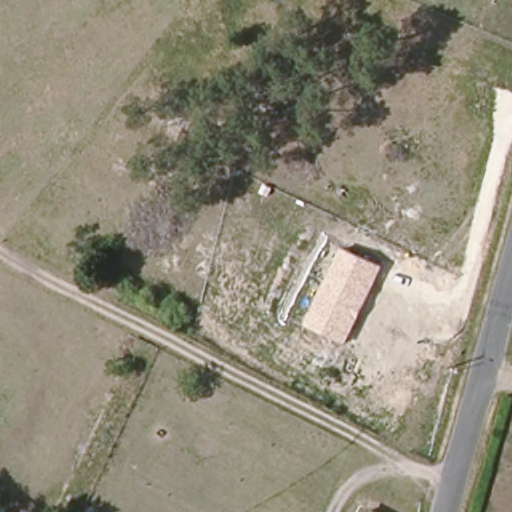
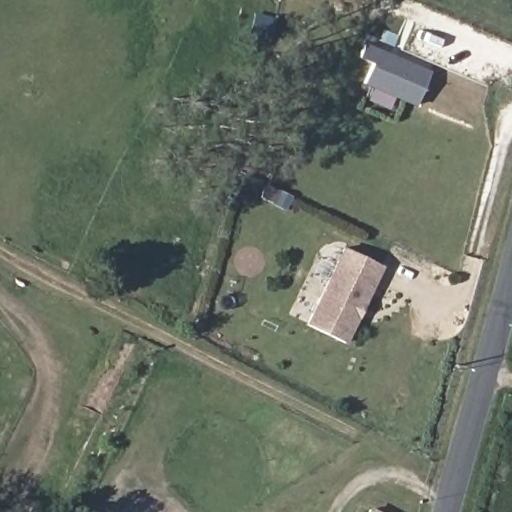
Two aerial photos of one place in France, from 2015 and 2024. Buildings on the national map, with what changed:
new [(433,74),(418,107),(367,83),(376,63),(362,57),(367,45),(433,74)]
unchanged [(348,345),(307,326),(343,246),(386,268),(348,345)]
unchanged [(369,495),(395,512),(358,512),(369,495)]

